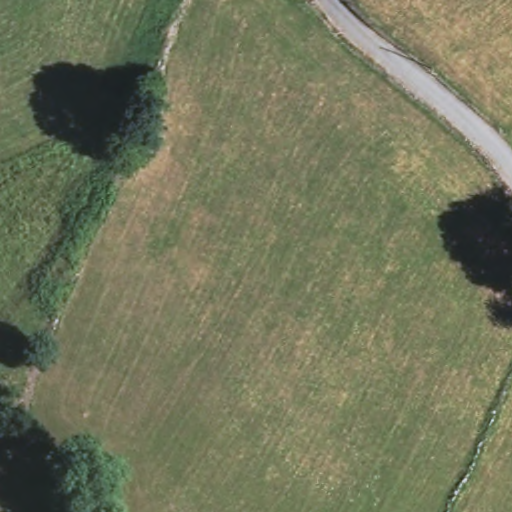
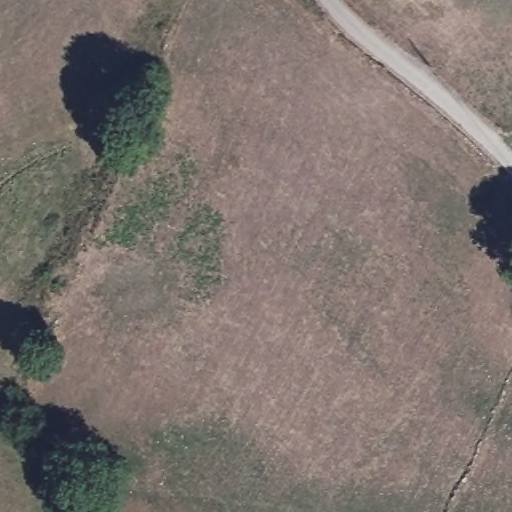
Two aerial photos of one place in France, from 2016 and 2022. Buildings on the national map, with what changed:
[]

